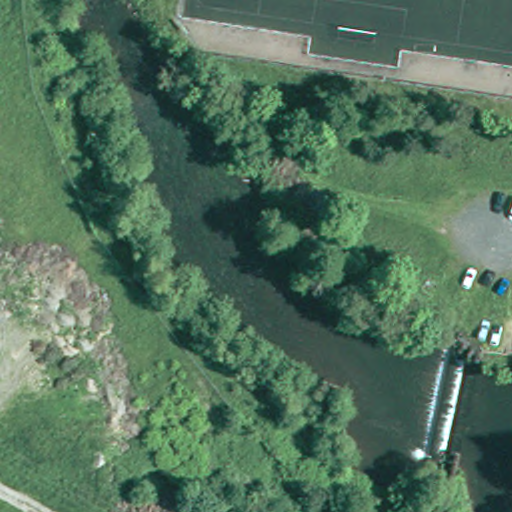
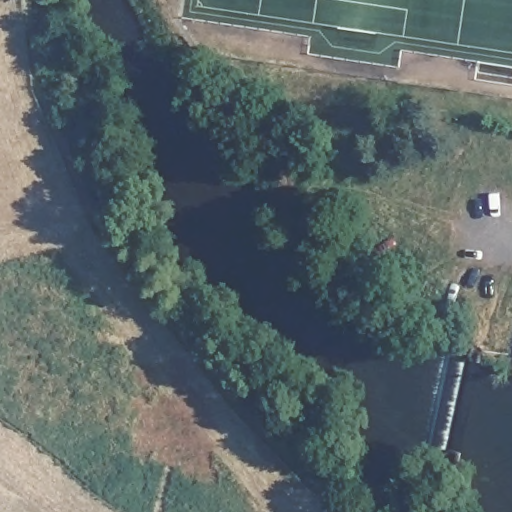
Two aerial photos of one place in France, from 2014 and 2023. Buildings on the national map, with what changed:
[]

